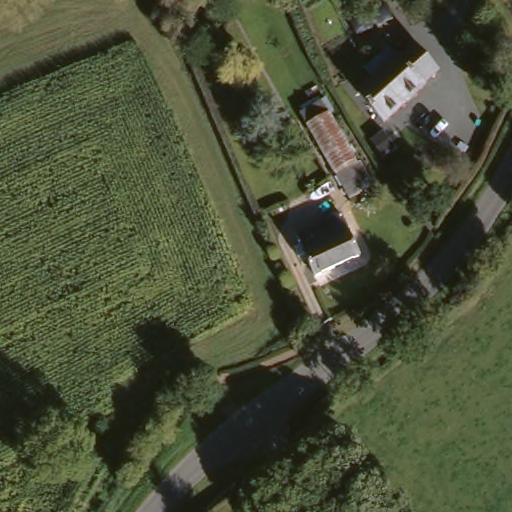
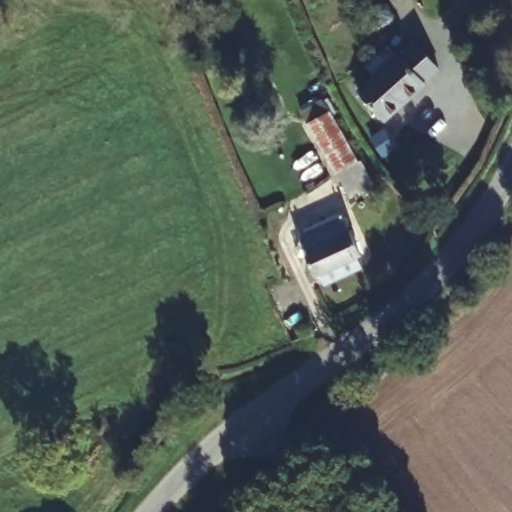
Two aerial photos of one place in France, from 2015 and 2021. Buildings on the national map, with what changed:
unchanged [(400,54),(414,40),(437,64),(425,76),(426,80),(385,118),(358,88),(397,50),(400,54)]
unchanged [(358,191),(345,166),(335,170),(304,114),(326,101),(358,156),(374,182),(358,191)]
unchanged [(365,254),(318,276),(298,234),(343,212),(365,254)]

